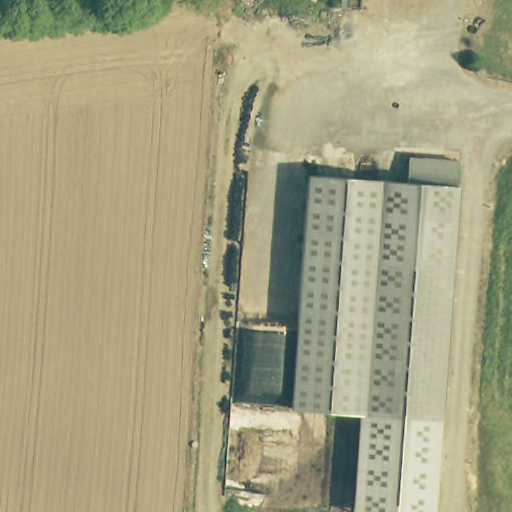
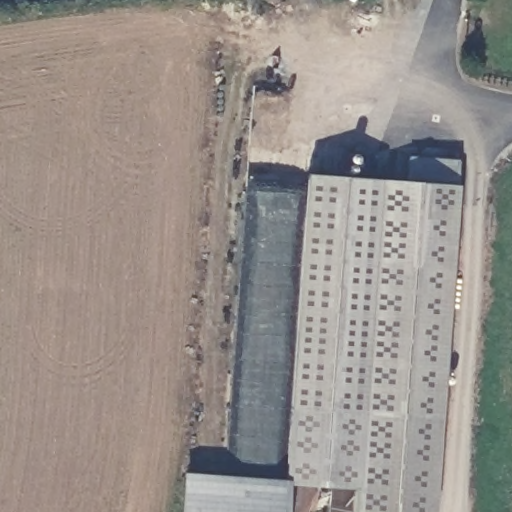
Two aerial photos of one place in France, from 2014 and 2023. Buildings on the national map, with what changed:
unchanged [(280,405),(304,170),(402,179),(405,160),(406,154),(457,159),(456,164),(431,419),(280,405)]
new [(290,406),(358,412),(353,487),(284,483),(290,406)]
unchanged [(431,419),(438,420),(433,512),(351,512),(358,412),(431,419)]
new [(182,472),(284,479),(284,483),(287,483),(285,512),(179,512),(182,472)]

